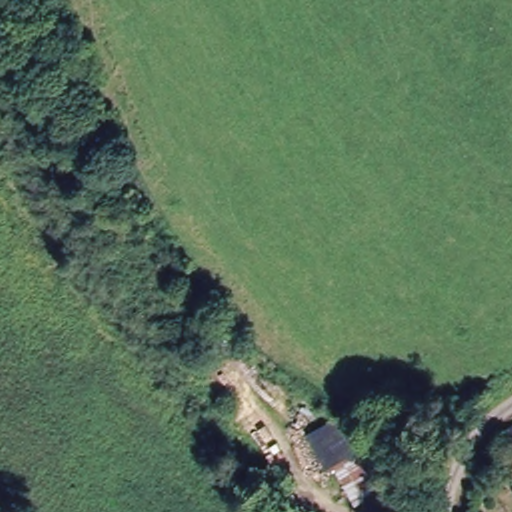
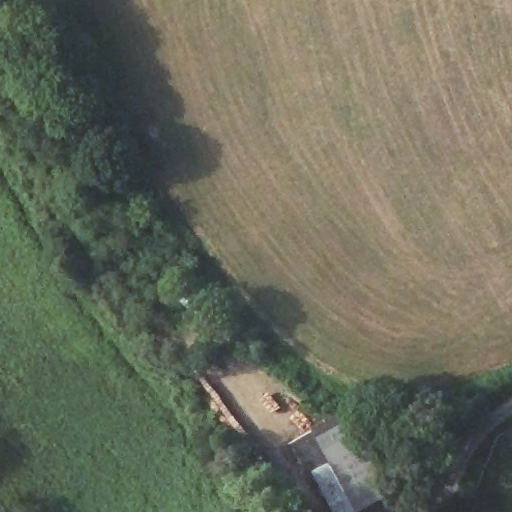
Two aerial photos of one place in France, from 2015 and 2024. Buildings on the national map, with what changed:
unchanged [(393,487),(354,510),(332,472),(328,474),(309,435),(354,412),(393,487)]

